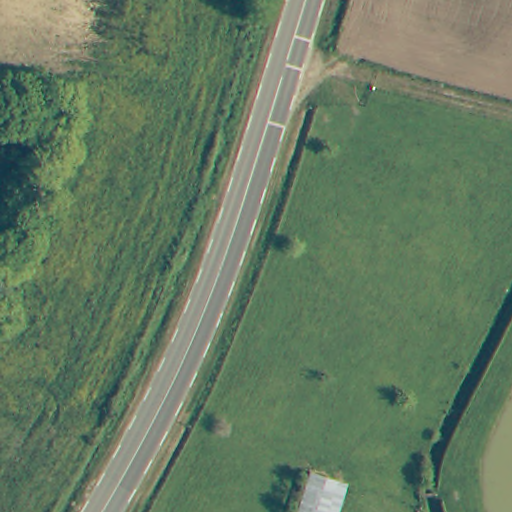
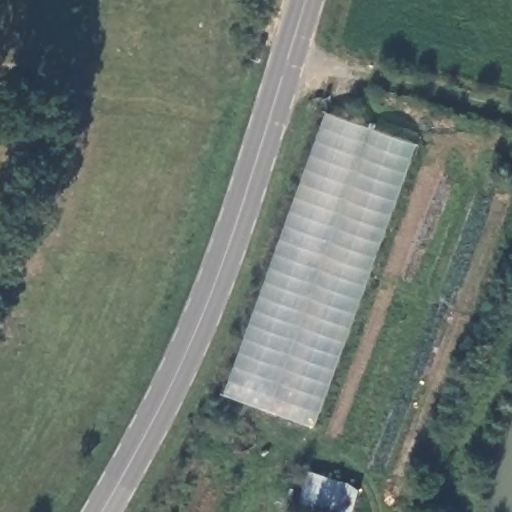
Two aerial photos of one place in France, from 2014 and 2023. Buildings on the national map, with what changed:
new [(225,395),(326,112),(417,145),(316,427),(225,395)]
unchanged [(305,476),(342,486),(335,512),(294,512),(305,476)]

